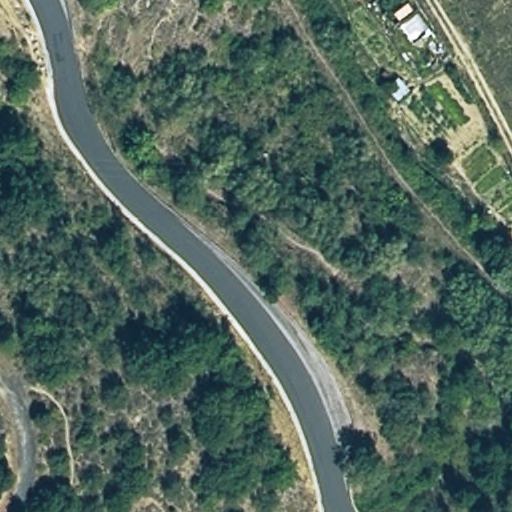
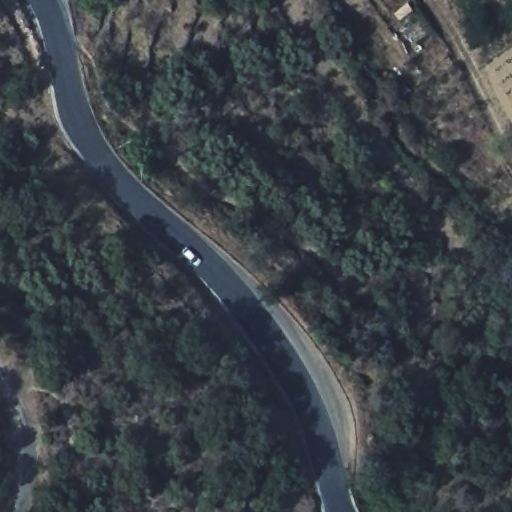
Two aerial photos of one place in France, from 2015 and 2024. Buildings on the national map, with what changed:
unchanged [(397,76),(410,86),(400,96),(387,85),(397,76)]

